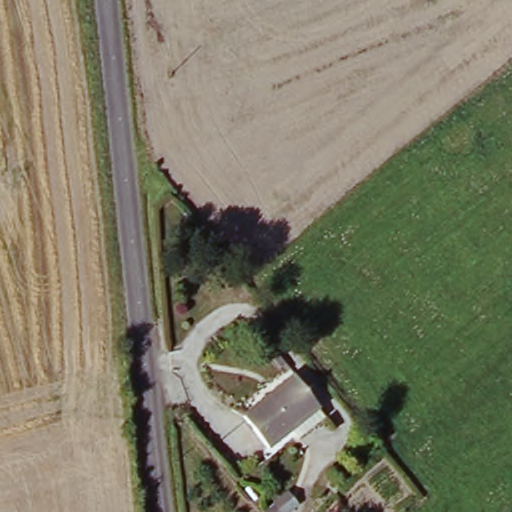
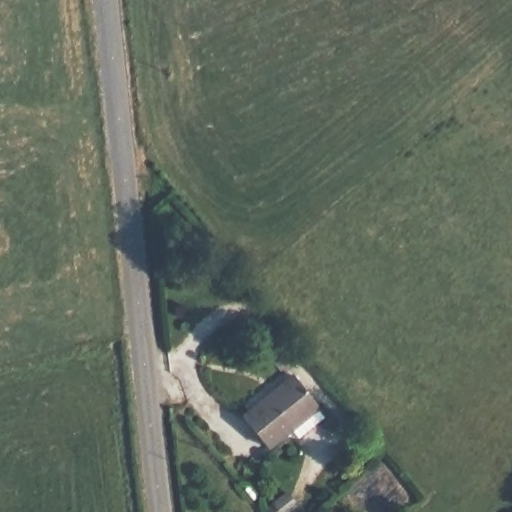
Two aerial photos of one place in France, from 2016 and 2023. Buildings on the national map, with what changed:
unchanged [(324,409),(323,410),(329,419),(303,439),(297,431),(273,449),(247,416),(299,375),(324,409)]
unchanged [(284,502),(290,512),(289,512),(271,512),(284,502)]

